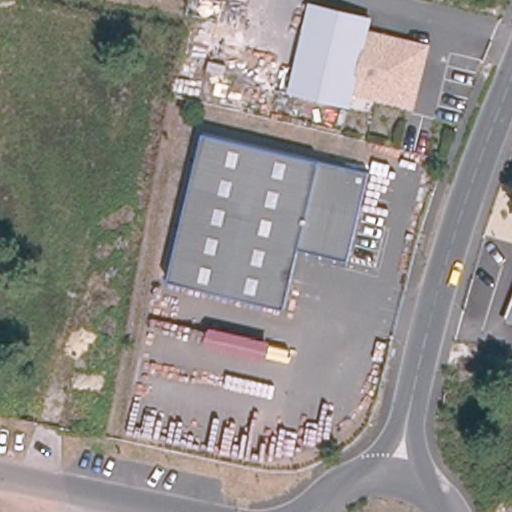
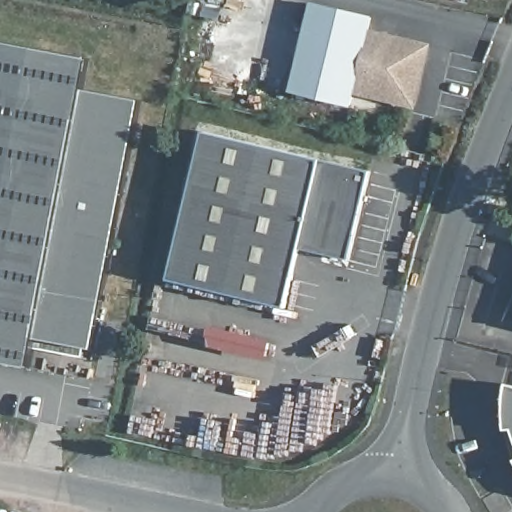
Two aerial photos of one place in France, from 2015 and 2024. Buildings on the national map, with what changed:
unchanged [(352,94),(350,107),(288,92),(308,2),(371,17),(369,30),(430,45),(415,110),(352,94)]
new [(85,90),(141,100),(94,350),(36,339),(30,368),(0,362),(0,42),(90,59),(85,90)]
unchanged [(318,161),(368,175),(347,261),(298,250),(283,307),(169,281),(204,134),(318,161)]
unchanged [(505,321),(512,303),(512,323),(505,321)]
new [(507,440),(504,427),(503,410),(506,382),(512,384),(512,453),(507,440)]

